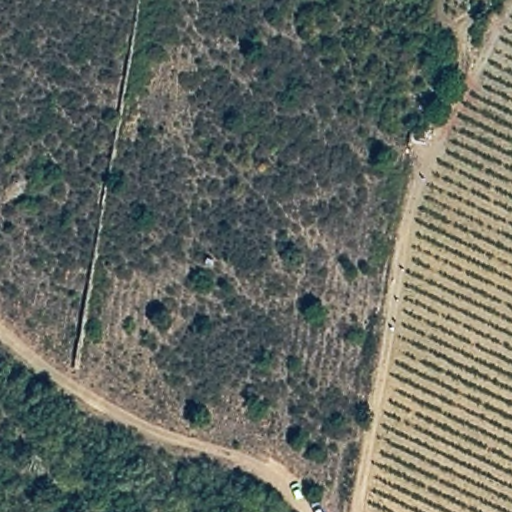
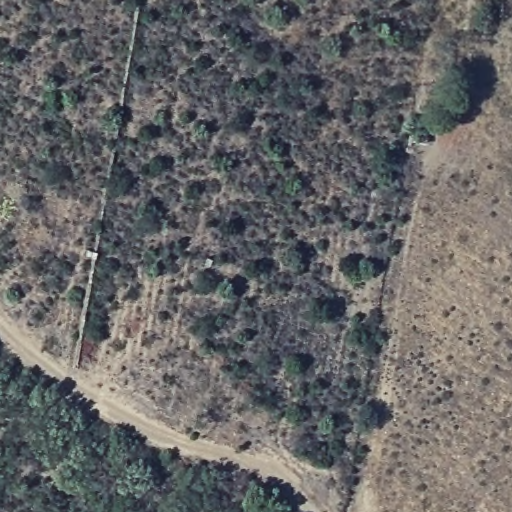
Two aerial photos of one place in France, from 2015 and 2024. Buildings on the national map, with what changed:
unchanged [(426,125),(423,140),(410,137),(412,124),(426,125)]

